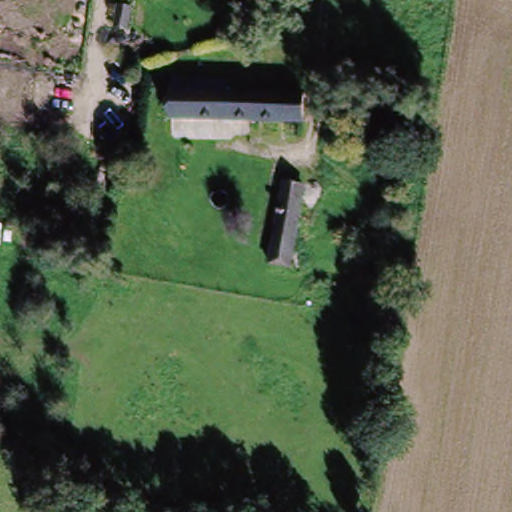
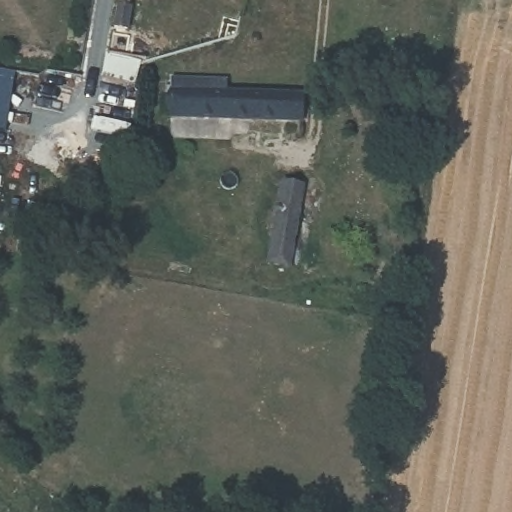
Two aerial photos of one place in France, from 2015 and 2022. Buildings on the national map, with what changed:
unchanged [(101,9),(114,10),(110,31),(97,29),(101,9)]
new [(14,71),(5,132),(0,131),(0,69),(14,71)]
unchanged [(172,79),(226,84),(225,95),(305,103),(303,133),(170,120),(172,79)]
unchanged [(316,188),(303,279),(275,274),(286,184),(316,188)]

